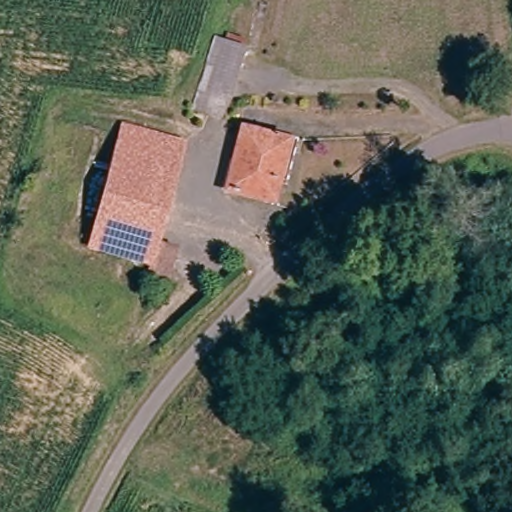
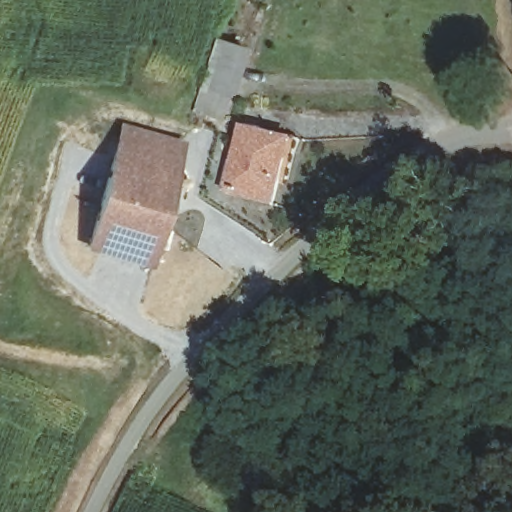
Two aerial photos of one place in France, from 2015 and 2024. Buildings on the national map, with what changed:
unchanged [(234,52),(222,105),(215,104),(211,119),(187,112),(204,44),(234,52)]
unchanged [(238,120),(277,130),(286,132),(296,136),(291,157),(279,152),(267,196),(234,189),(221,185),(229,152),(238,120)]
unchanged [(117,272),(120,261),(85,252),(118,124),(176,139),(152,242),(170,246),(161,279),(142,271),(140,280),(137,290),(115,282),(117,272)]

